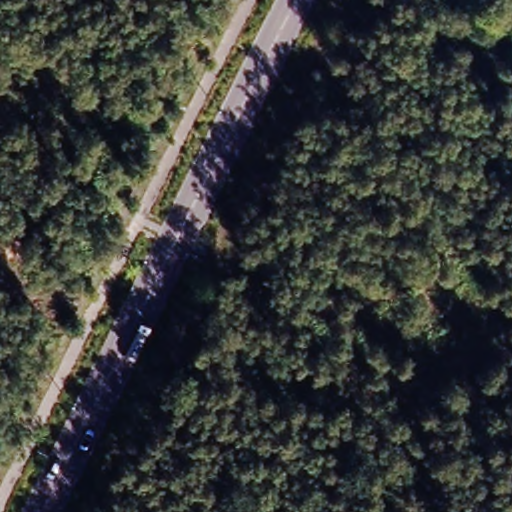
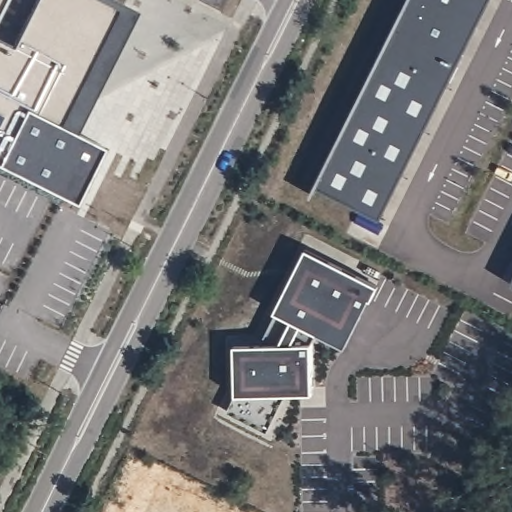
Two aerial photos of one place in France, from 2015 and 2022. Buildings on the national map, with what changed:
new [(0,12),(0,0),(6,0),(0,12)]
new [(0,162),(0,40),(14,46),(37,0),(119,0),(137,9),(77,134),(103,146),(75,200),(0,162)]
new [(415,0),(493,0),(388,208),(326,174),(415,0)]
new [(346,346),(320,331),(313,341),(312,390),(290,391),(267,429),(229,410),(238,392),(237,344),(260,343),(277,310),(307,249),(377,284),(346,346)]
new [(8,445),(0,461),(0,441),(8,445)]

